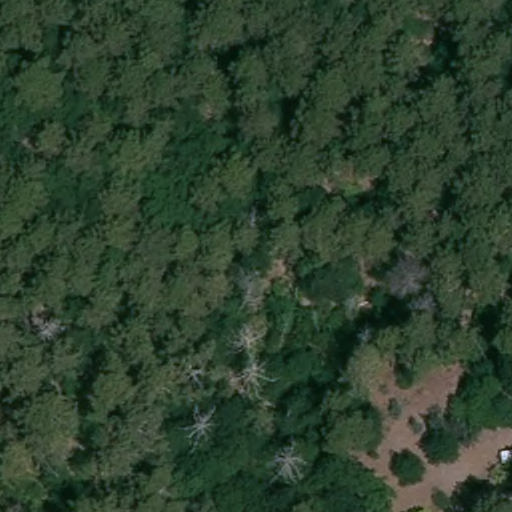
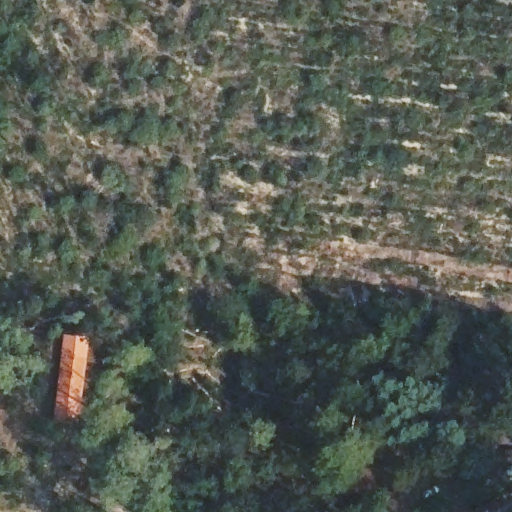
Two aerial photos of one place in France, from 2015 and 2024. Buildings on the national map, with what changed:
new [(66,383),(61,383),(65,334),(90,337),(82,409),(63,407),(66,383)]

